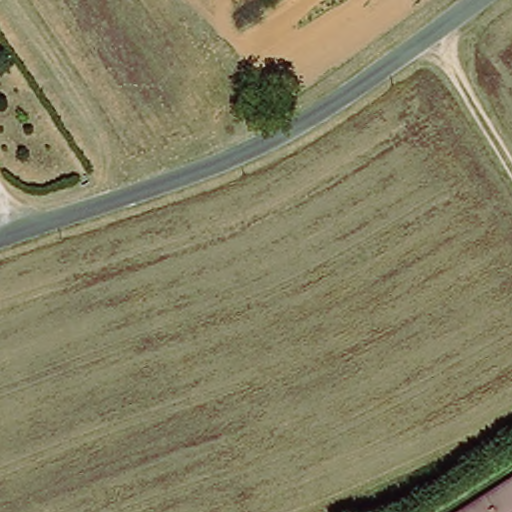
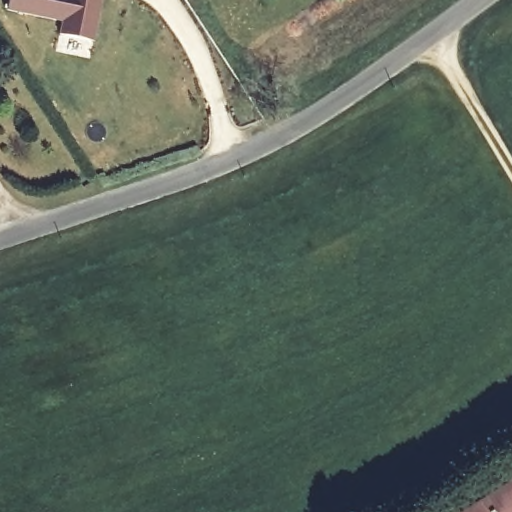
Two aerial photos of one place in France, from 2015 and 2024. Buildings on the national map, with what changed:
new [(59,33),(61,20),(6,10),(8,0),(101,0),(93,40),(59,33)]
unchanged [(512,481),(512,512),(466,512),(512,481)]

